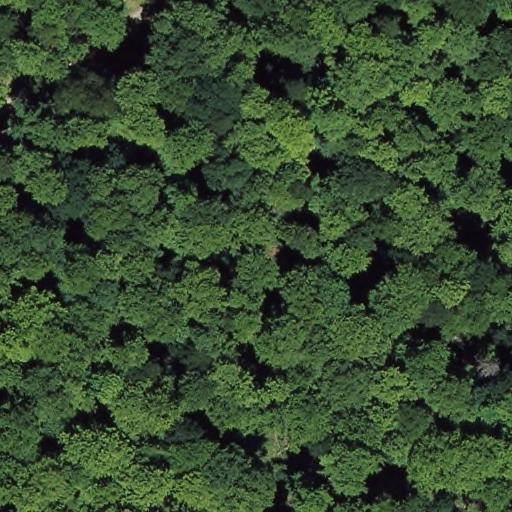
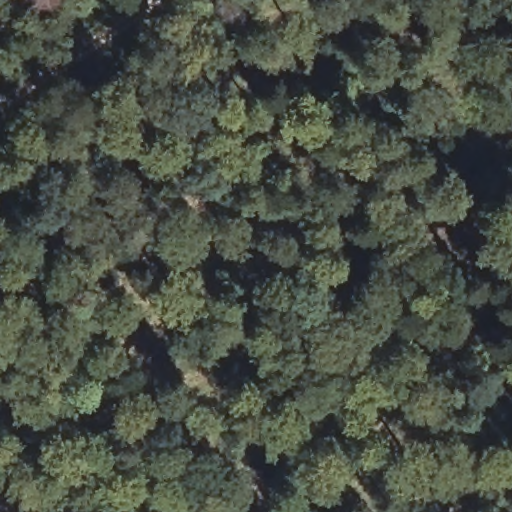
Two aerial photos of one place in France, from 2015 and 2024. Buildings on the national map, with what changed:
unchanged [(97,11),(111,0),(120,0),(125,5),(105,21),(97,11)]

